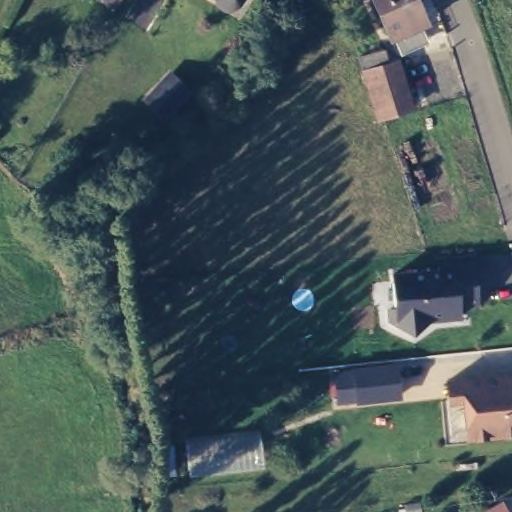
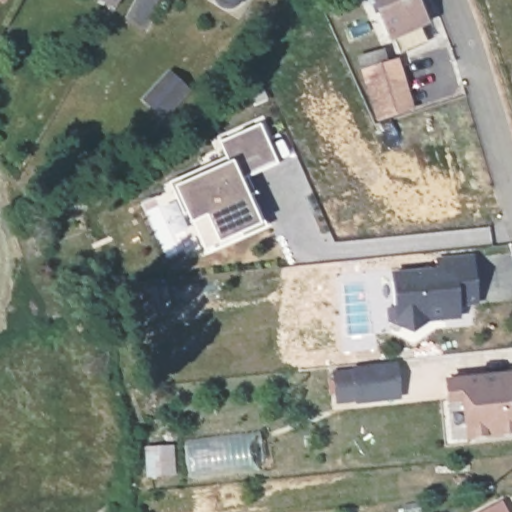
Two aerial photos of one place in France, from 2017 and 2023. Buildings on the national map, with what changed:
unchanged [(100,0),(116,0),(113,6),(100,0)]
unchanged [(236,5),(231,7),(227,8),(224,8),(221,5),(219,4),(217,1),(217,0),(240,0),(236,5)]
unchanged [(390,38),(373,0),(416,0),(426,21),(390,38)]
unchanged [(404,86),(411,105),(412,109),(378,119),(364,72),(359,58),(384,50),(388,64),(397,62),(404,86)]
new [(166,118),(143,99),(171,69),(192,89),(166,118)]
new [(261,124),(279,164),(248,179),(256,195),(253,196),(268,228),(208,255),(193,224),(188,213),(183,214),(170,183),(226,158),(218,142),(261,124)]
unchanged [(459,305),(459,317),(433,319),(413,334),(388,323),(387,310),(394,309),(391,275),(439,271),(438,260),(473,258),(476,290),(477,304),(459,305)]
unchanged [(400,394),(359,401),(356,371),(397,366),(400,394)]
unchanged [(449,401),(447,382),(512,375),(512,434),(467,439),(452,440),(449,401)]
new [(503,500),(509,512),(480,512),(503,500)]

